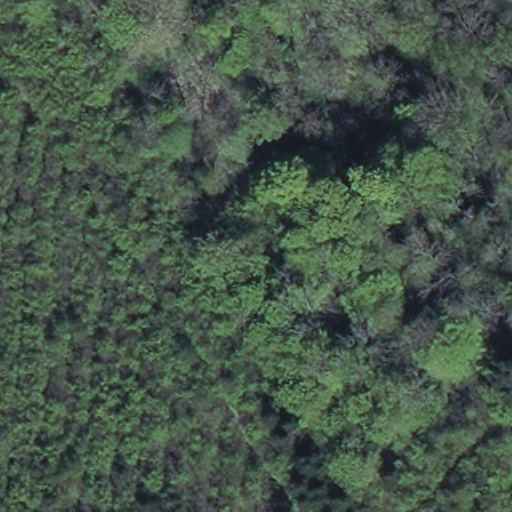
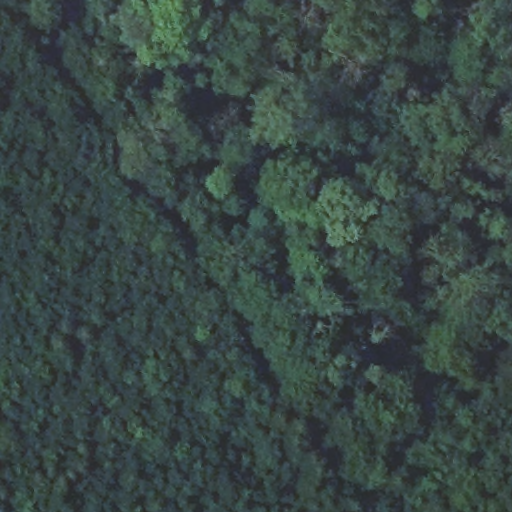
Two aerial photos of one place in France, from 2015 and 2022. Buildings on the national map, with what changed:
[]

